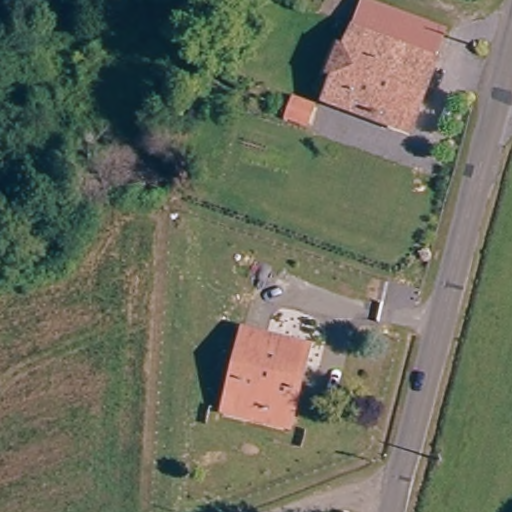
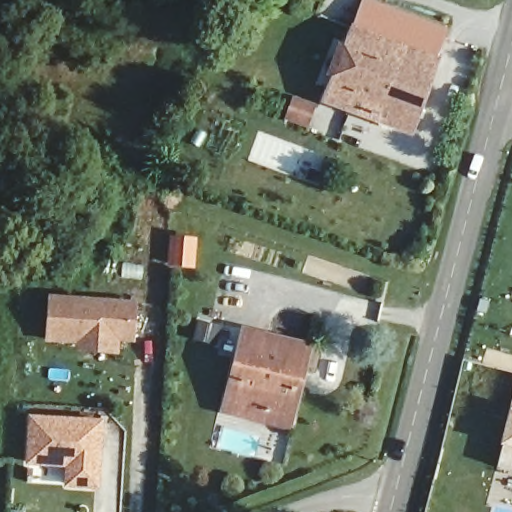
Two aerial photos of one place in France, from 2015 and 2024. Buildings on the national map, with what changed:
unchanged [(412,130),(332,102),(336,90),(326,73),(334,48),(351,40),(363,1),(443,30),(412,130)]
unchanged [(312,128),(284,120),(293,94),(319,103),(312,128)]
new [(121,343),(120,356),(77,353),(77,345),(47,343),(50,298),(139,303),(137,344),(121,343)]
unchanged [(256,418),(225,410),(240,349),(246,326),(270,331),(309,341),(291,416),(288,426),(256,418)]
new [(500,446),(510,410),(512,402),(512,468),(496,464),(500,446)]
new [(64,488),(66,469),(27,466),(29,417),(105,421),(101,489),(64,488)]

